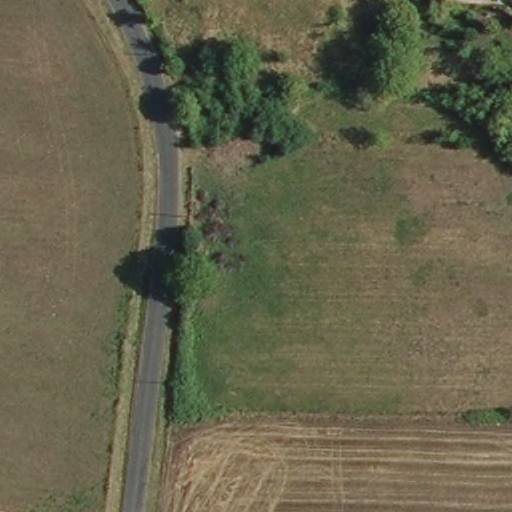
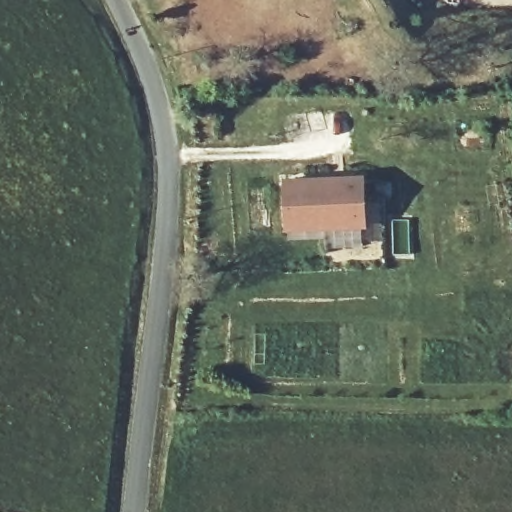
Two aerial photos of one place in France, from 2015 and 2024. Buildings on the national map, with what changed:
demolished [(294,111),(277,111),(278,96),(296,97),(294,111)]
new [(365,174),(367,225),(285,229),(283,179),(365,174)]

